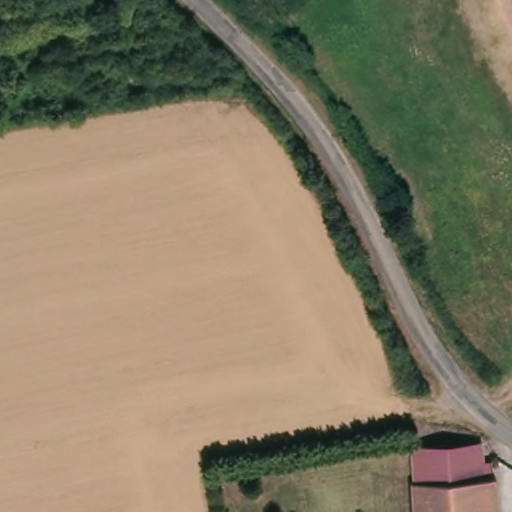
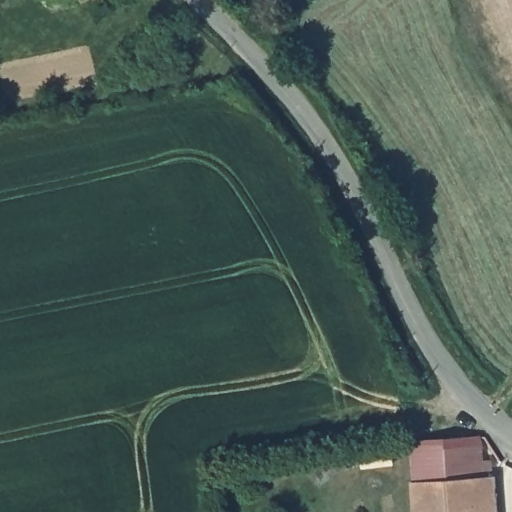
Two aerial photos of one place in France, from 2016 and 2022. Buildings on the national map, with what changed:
unchanged [(496,479),(425,476),(425,447),(495,446),(496,479)]
unchanged [(505,479),(504,512),(415,512),(415,476),(425,476),(496,479),(505,479)]

